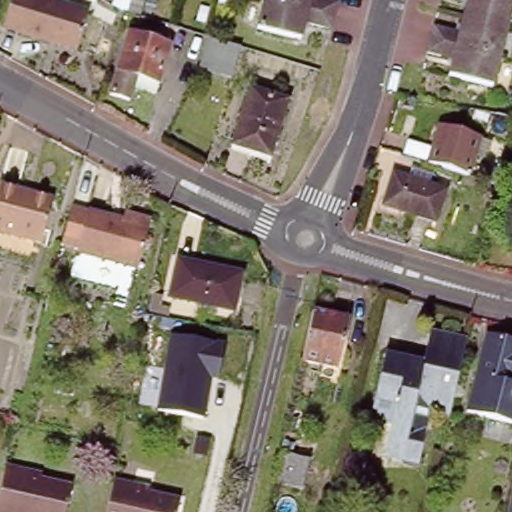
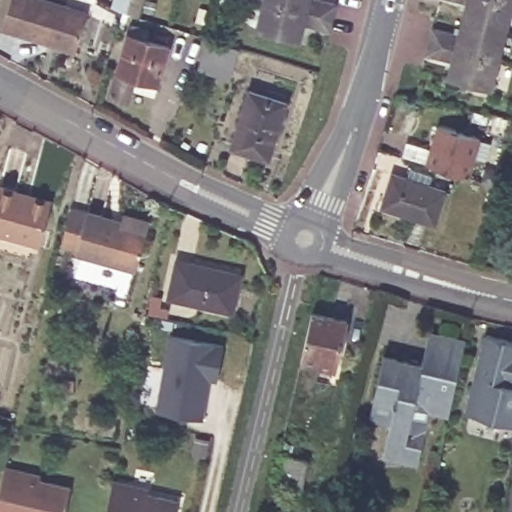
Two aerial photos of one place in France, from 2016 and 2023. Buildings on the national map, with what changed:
unchanged [(78,55),(1,34),(12,0),(62,0),(91,9),(78,55)]
unchanged [(300,22),(297,36),(253,26),(259,0),(276,0),(328,13),(324,28),(300,22)]
unchanged [(276,0),(331,0),(328,13),(276,0)]
unchanged [(439,0),(506,0),(510,1),(504,30),(460,19),(463,5),(439,0)]
unchanged [(506,0),(511,0),(510,1),(506,0)]
unchanged [(132,18),(138,21),(137,26),(130,24),(132,18)]
unchanged [(430,30),(455,36),(460,19),(504,30),(496,60),(426,44),(430,30)]
unchanged [(129,30),(170,44),(155,92),(131,84),(127,98),(110,92),(129,30)]
unchanged [(240,50),(230,82),(199,72),(208,41),(240,50)]
unchanged [(426,44),(496,60),(489,89),(445,78),(448,64),(422,58),(426,44)]
unchanged [(289,101),(270,160),(232,148),(250,90),(289,101)]
unchanged [(481,135),(470,174),(428,161),(440,122),(481,135)]
unchanged [(394,176),(446,193),(436,224),(383,206),(394,176)]
unchanged [(56,202),(55,206),(43,244),(0,230),(0,192),(2,184),(22,191),(56,202)]
unchanged [(88,201),(123,208),(148,213),(147,222),(140,261),(135,284),(101,277),(106,254),(78,248),(88,201)]
unchanged [(171,297),(179,263),(193,267),(193,264),(241,275),(233,312),(171,297)]
unchanged [(316,311),(351,320),(340,368),(305,360),(316,311)]
unchanged [(383,455),(390,421),(371,415),(383,353),(421,359),(425,328),(465,338),(448,415),(416,411),(412,432),(425,435),(416,467),(383,455)]
unchanged [(512,337),(512,385),(476,379),(487,331),(512,337)]
unchanged [(222,342),(217,376),(211,375),(204,416),(154,408),(166,334),(222,342)]
unchanged [(476,379),(512,385),(512,421),(470,409),(476,379)]
unchanged [(278,452),(306,459),(300,490),(271,483),(278,452)]
unchanged [(10,464),(28,469),(46,473),(45,478),(72,484),(66,512),(0,512),(0,506),(10,464)]
unchanged [(115,475),(135,480),(151,484),(150,490),(177,496),(174,512),(106,512),(115,475)]

